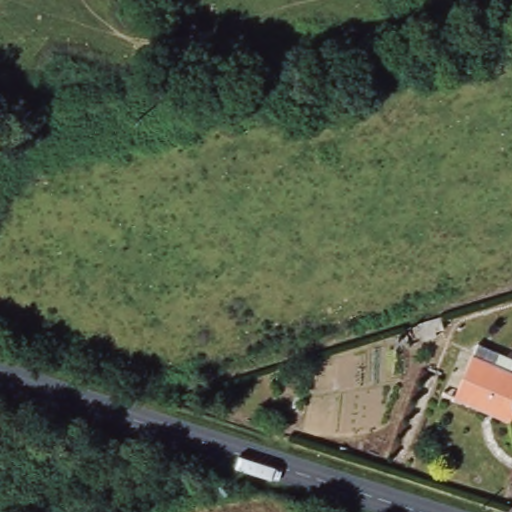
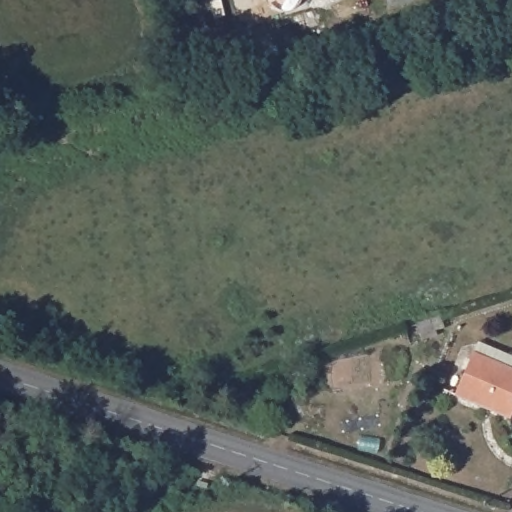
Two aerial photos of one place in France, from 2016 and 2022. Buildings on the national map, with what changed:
unchanged [(440,318),(444,328),(436,331),(437,337),(423,341),(417,325),(440,318)]
unchanged [(480,339),(512,353),(512,410),(509,417),(455,392),(474,350),(480,339)]

